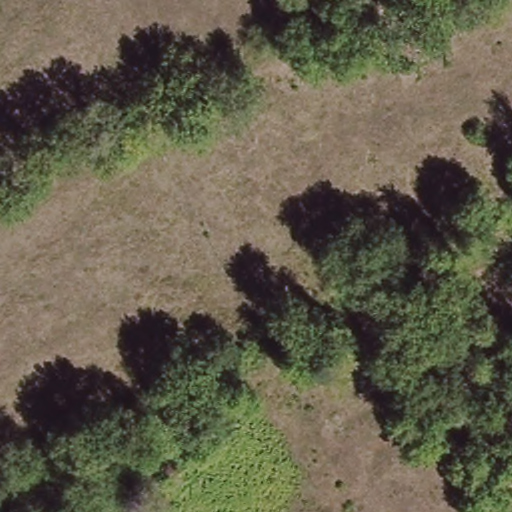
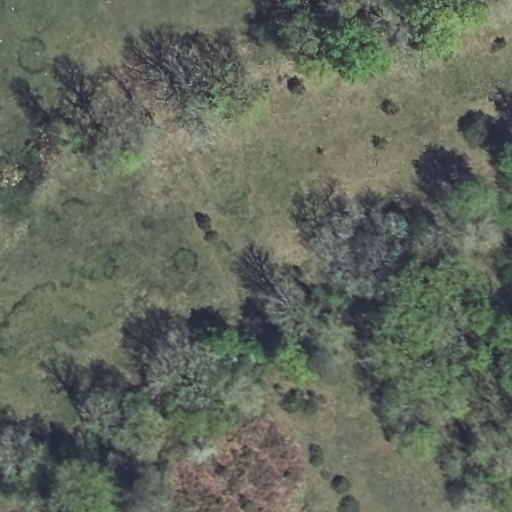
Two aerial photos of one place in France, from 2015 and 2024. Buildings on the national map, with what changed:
[]

